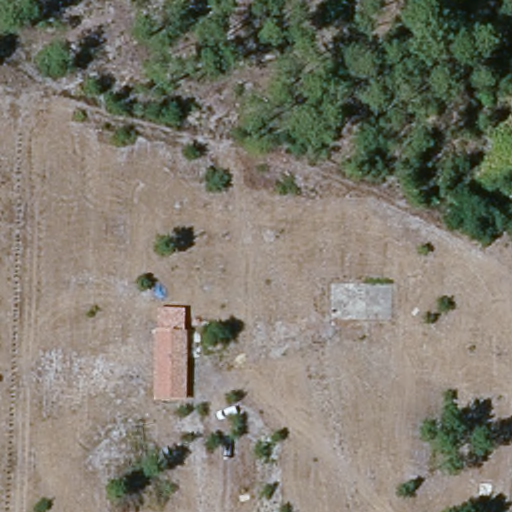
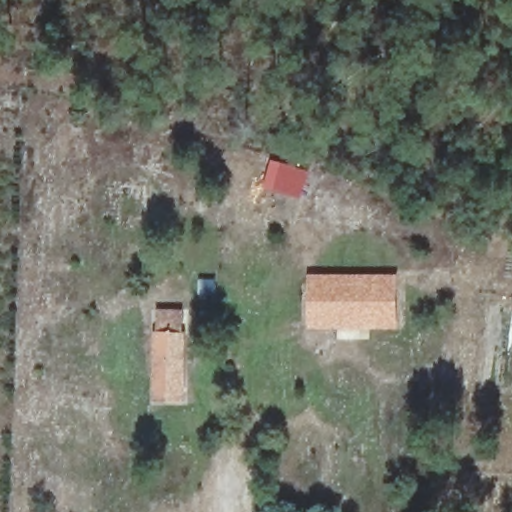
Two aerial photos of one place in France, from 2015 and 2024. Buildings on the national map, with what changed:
new [(398,274),(398,330),(308,329),(307,274),(398,274)]
unchanged [(153,403),(154,333),(157,333),(157,312),(185,312),(184,334),(187,334),(187,403),(153,403)]

